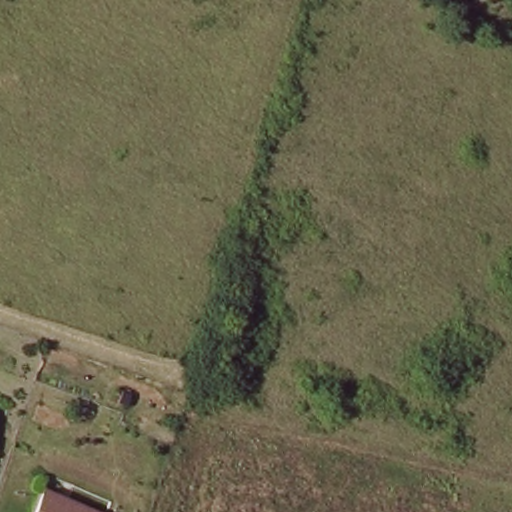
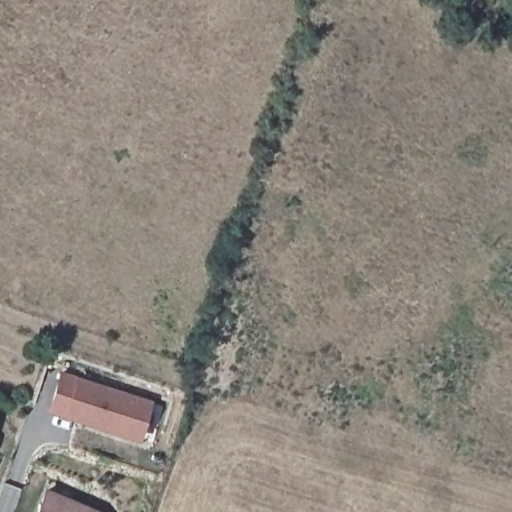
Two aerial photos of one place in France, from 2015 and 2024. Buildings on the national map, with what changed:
new [(61,371),(153,400),(140,442),(48,411),(61,371)]
unchanged [(114,512),(44,512),(53,487),(115,511),(114,512)]

